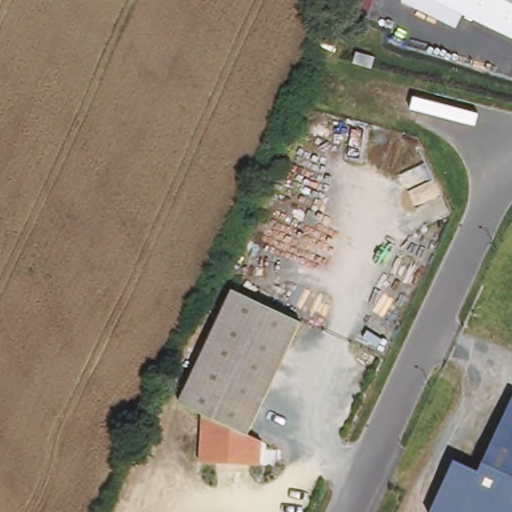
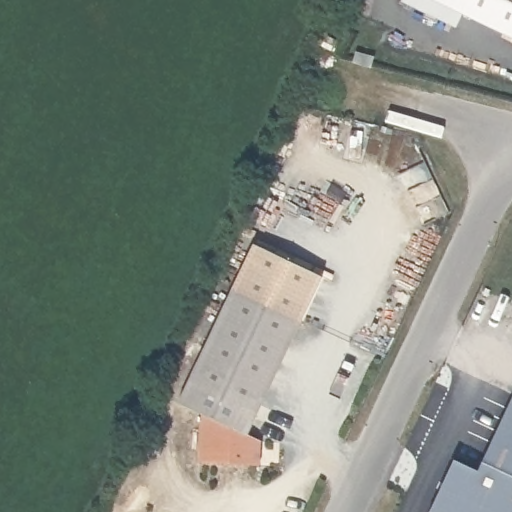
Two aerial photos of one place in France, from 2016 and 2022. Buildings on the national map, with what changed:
unchanged [(512,5),(512,38),(462,14),(455,28),(402,2),(402,0),(502,0),(512,5)]
unchanged [(502,0),(512,0),(512,5),(502,0)]
new [(255,244),(322,277),(301,322),(233,292),(255,244)]
unchanged [(261,442),(259,467),(200,464),(201,415),(181,405),(233,292),(303,323),(247,435),(261,442)]
unchanged [(430,512),(452,462),(478,472),(512,401),(512,512),(430,512)]

